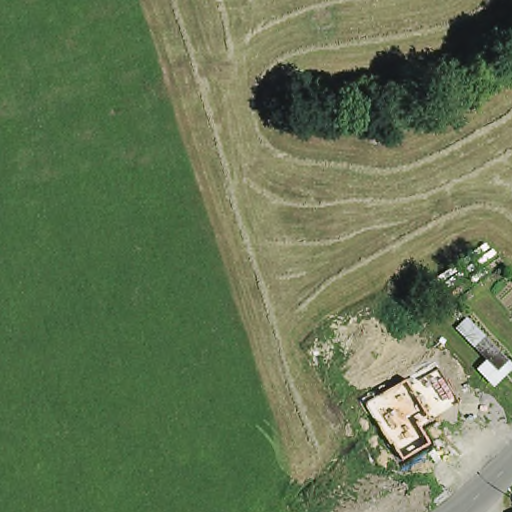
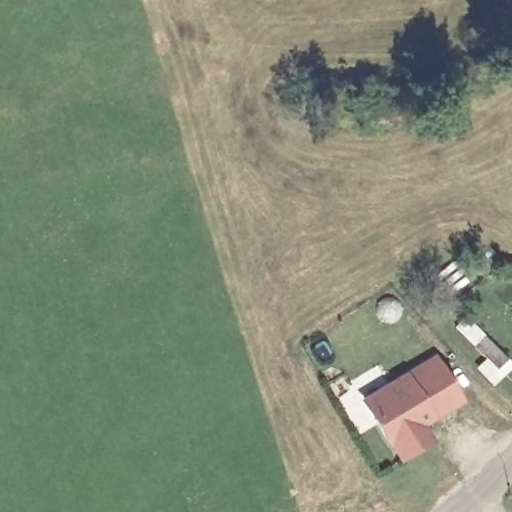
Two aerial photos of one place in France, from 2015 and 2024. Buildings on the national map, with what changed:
unchanged [(494,370),(475,349),(486,339),(505,360),(494,370)]
new [(406,380),(410,387),(439,369),(460,403),(420,428),(430,445),(403,462),(392,445),(390,446),(365,405),(406,380)]
demolished [(402,487),(408,484),(424,512),(357,512),(387,496),(402,487)]

